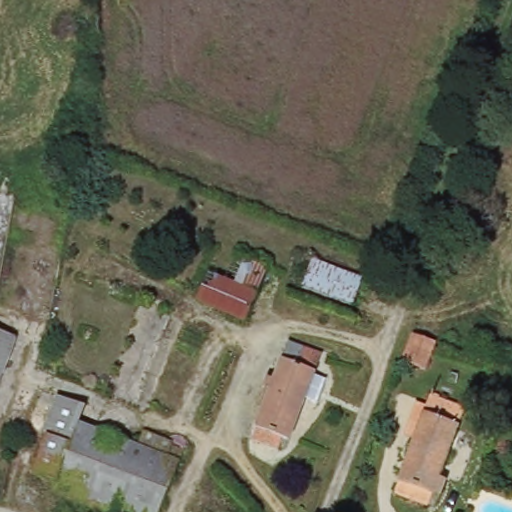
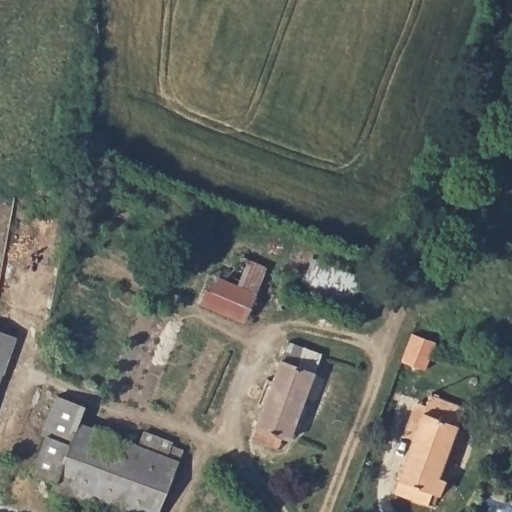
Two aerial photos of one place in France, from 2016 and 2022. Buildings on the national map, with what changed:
unchanged [(259,270),(242,320),(194,303),(212,252),(259,270)]
unchanged [(298,286),(308,258),(360,276),(348,306),(298,286)]
unchanged [(443,336),(432,366),(409,358),(419,328),(443,336)]
unchanged [(13,340),(0,377),(0,335),(13,340)]
unchanged [(313,356),(306,376),(320,381),(310,406),(299,402),(284,443),(277,440),(272,452),(245,442),(282,343),(313,356)]
unchanged [(36,435),(51,395),(81,407),(73,425),(127,447),(134,431),(168,445),(165,453),(177,459),(155,512),(102,512),(48,490),(52,482),(27,472),(41,436),(36,435)]
unchanged [(423,410),(427,397),(459,408),(424,506),(391,495),(410,442),(398,437),(410,405),(423,410)]

